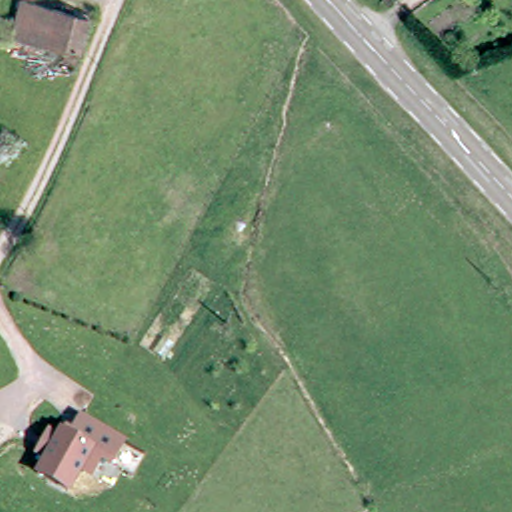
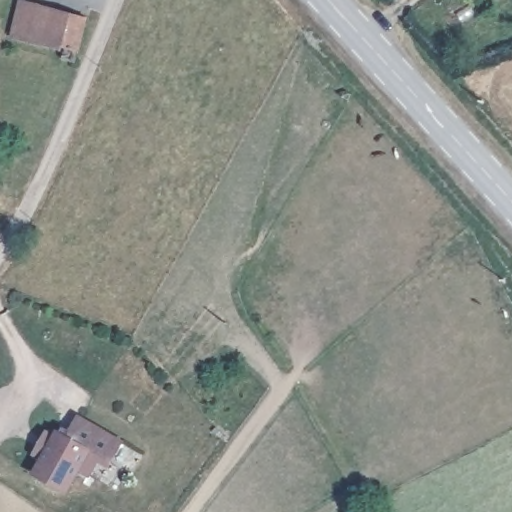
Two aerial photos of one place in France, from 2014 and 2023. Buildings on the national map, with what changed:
unchanged [(69,51),(69,53),(55,52),(57,40),(45,39),(29,37),(32,4),(49,5),(74,8),(69,51)]
unchanged [(65,430),(74,434),(84,414),(127,436),(116,458),(107,453),(98,470),(87,465),(76,488),(45,472),(65,430)]

